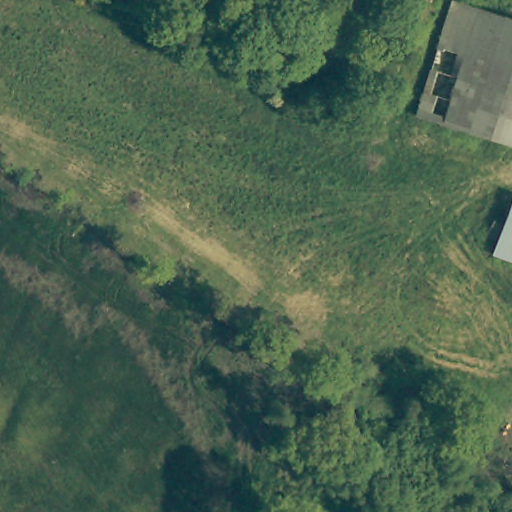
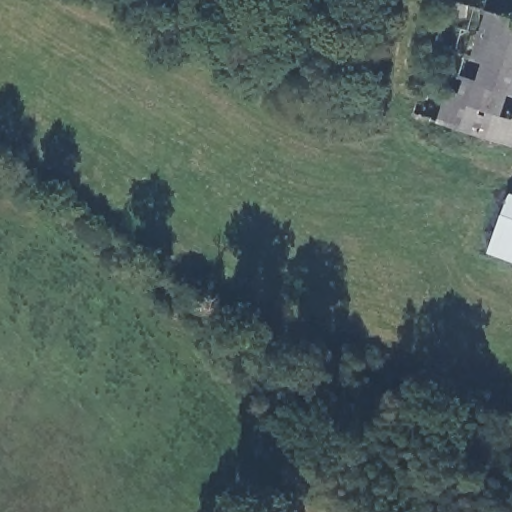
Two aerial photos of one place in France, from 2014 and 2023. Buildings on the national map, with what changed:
unchanged [(420,116),(455,0),(457,0),(512,18),(512,138),(510,143),(420,116)]
unchanged [(493,246),(512,198),(512,253),(493,246)]

